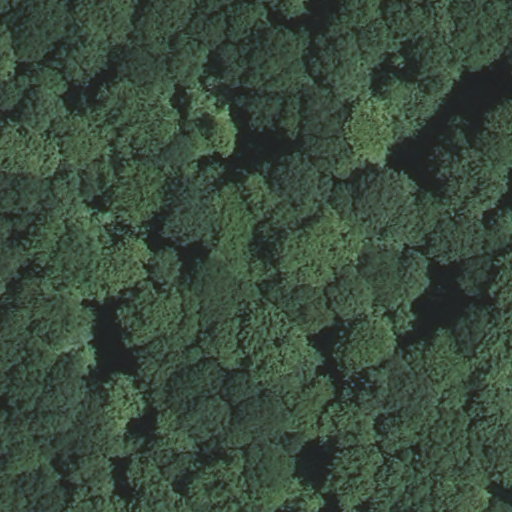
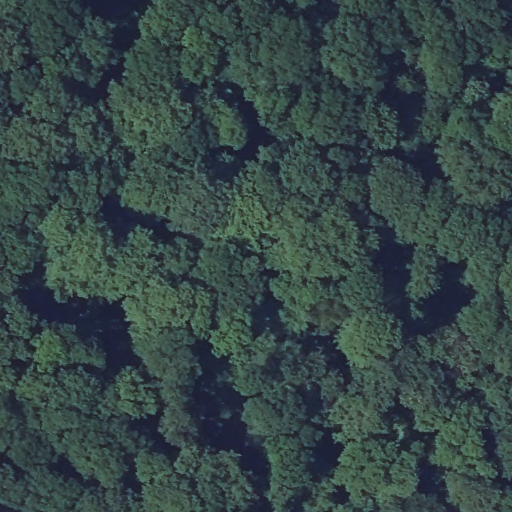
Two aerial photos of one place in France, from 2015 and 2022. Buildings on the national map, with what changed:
[]

